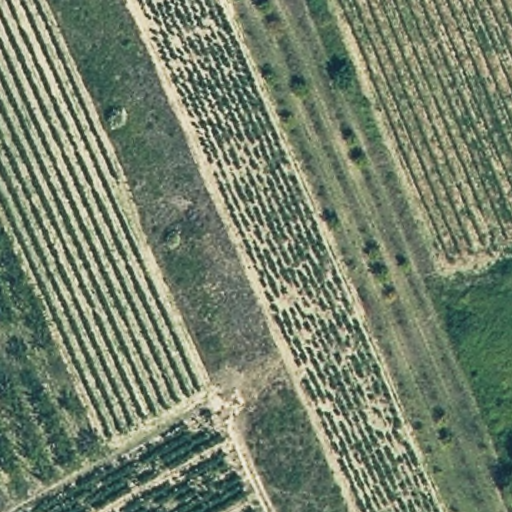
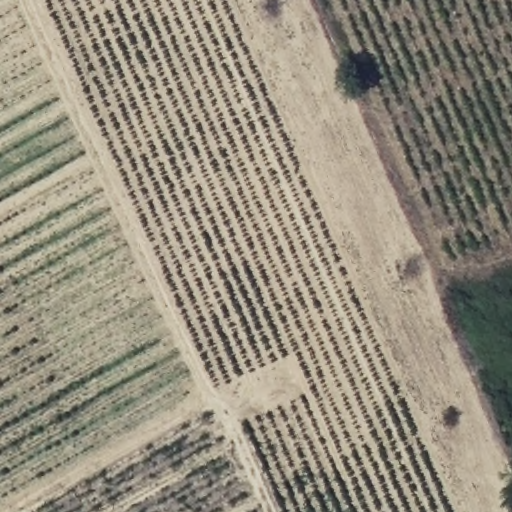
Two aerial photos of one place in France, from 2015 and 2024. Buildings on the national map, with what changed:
[]

